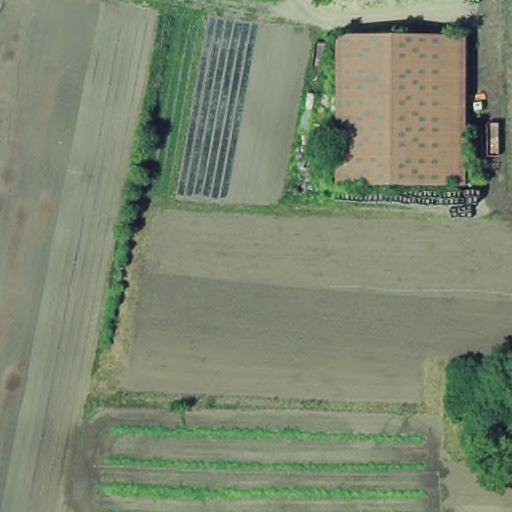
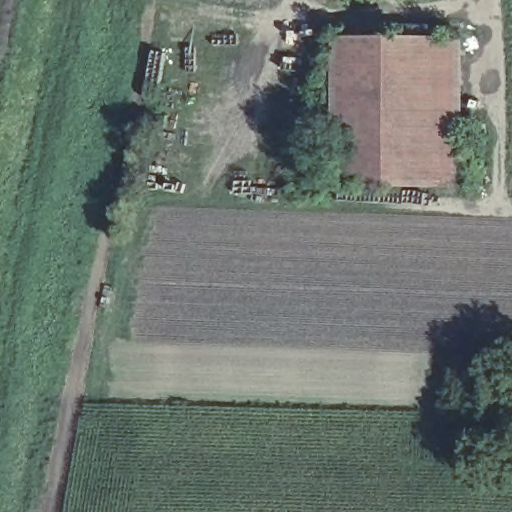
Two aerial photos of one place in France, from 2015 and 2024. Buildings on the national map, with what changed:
unchanged [(379,42),(460,43),(459,193),(355,193),(330,193),(332,83),(333,42),(379,42)]

